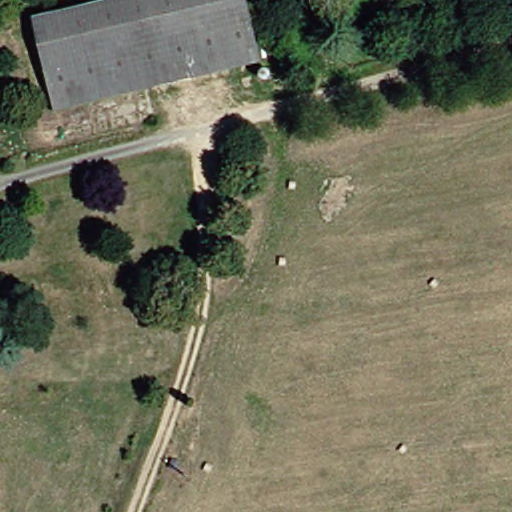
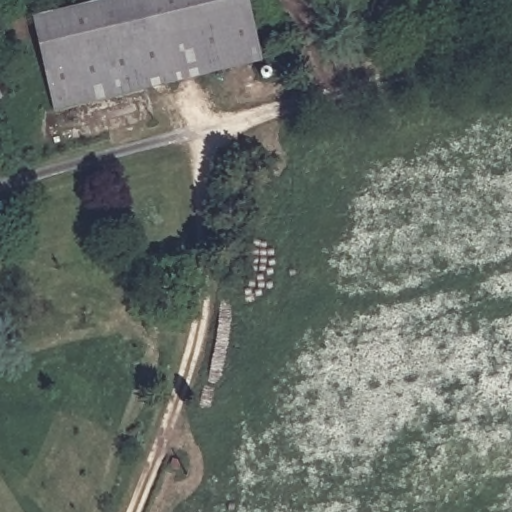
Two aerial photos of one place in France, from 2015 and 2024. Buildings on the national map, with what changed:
unchanged [(270,58),(70,115),(42,21),(125,0),(254,0),(270,58)]
unchanged [(0,99),(0,97),(1,98),(0,99)]

